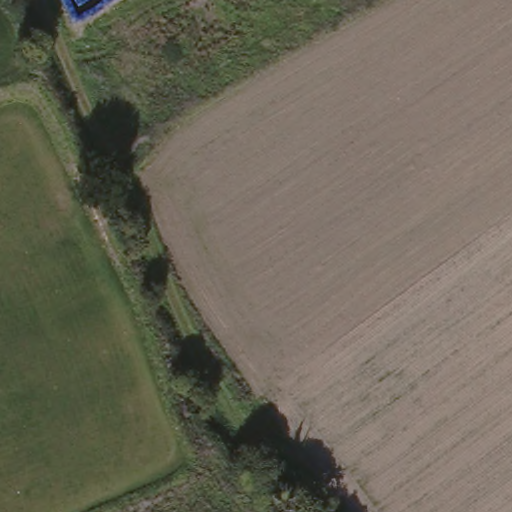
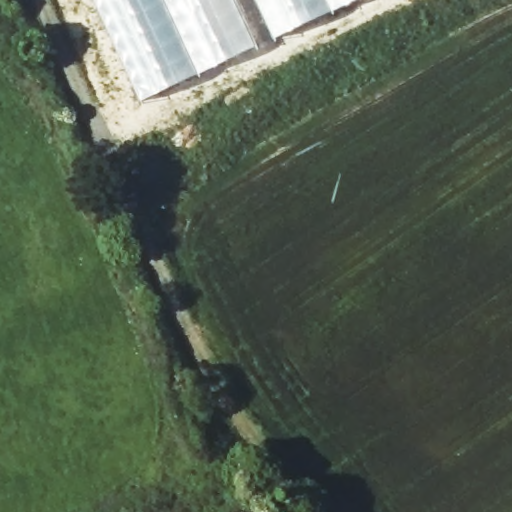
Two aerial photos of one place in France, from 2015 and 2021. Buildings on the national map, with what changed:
new [(140,97),(96,0),(234,0),(254,44),(140,97)]
new [(257,0),(346,0),(273,34),(257,0)]

